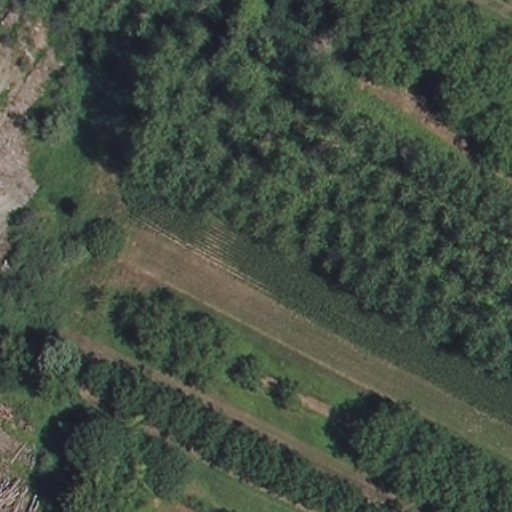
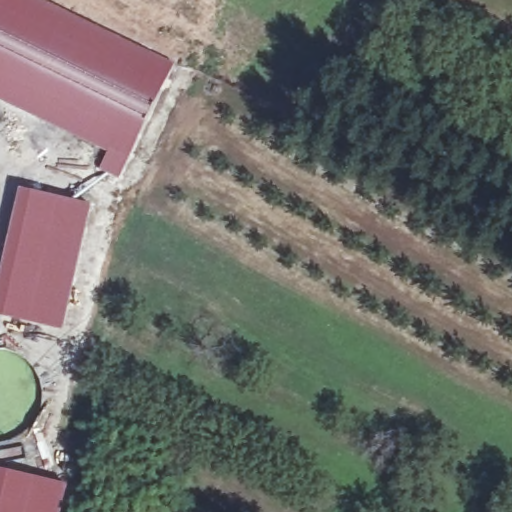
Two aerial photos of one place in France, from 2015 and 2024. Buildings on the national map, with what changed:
new [(121,179),(101,170),(108,150),(0,97),(0,0),(46,0),(175,63),(121,179)]
new [(93,205),(62,330),(0,314),(0,280),(21,189),(93,205)]
new [(68,483),(62,512),(0,512),(0,468),(68,483)]

